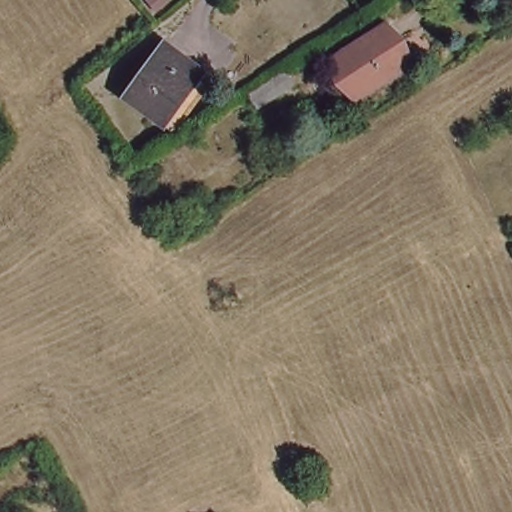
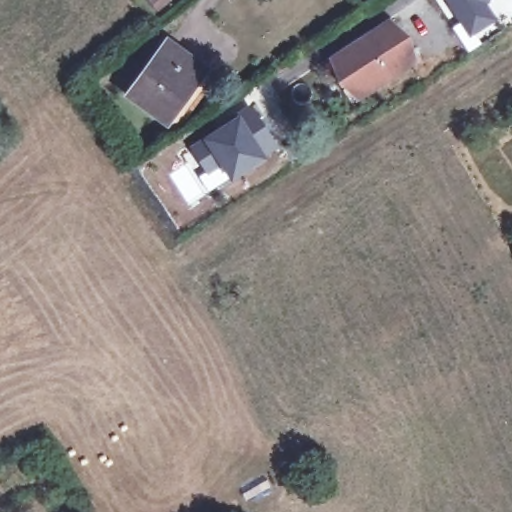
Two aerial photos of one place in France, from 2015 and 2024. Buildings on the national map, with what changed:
new [(497,19),(470,36),(447,0),(489,0),(487,1),(497,19)]
unchanged [(334,85),(343,80),(331,61),(392,22),(401,36),(395,40),(408,61),(361,91),(344,101),(334,85)]
unchanged [(204,79),(171,125),(124,91),(158,45),(204,79)]
unchanged [(295,81),(261,104),(251,90),(286,67),(295,81)]
new [(252,104),(280,146),(230,180),(209,192),(198,176),(204,172),(187,146),(252,104)]

